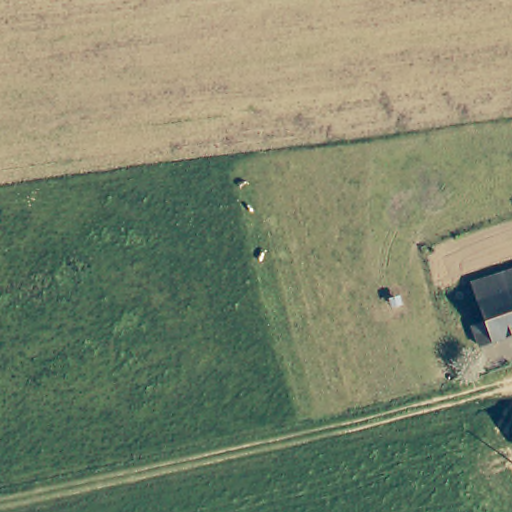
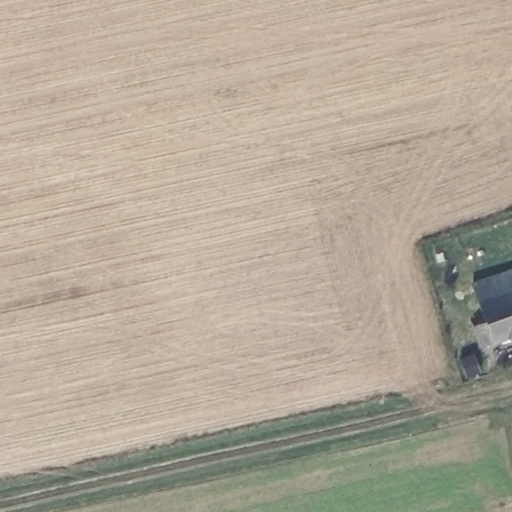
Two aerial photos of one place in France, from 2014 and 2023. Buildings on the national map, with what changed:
unchanged [(512,277),(512,343),(487,353),(478,331),(488,327),(475,292),(512,277)]

